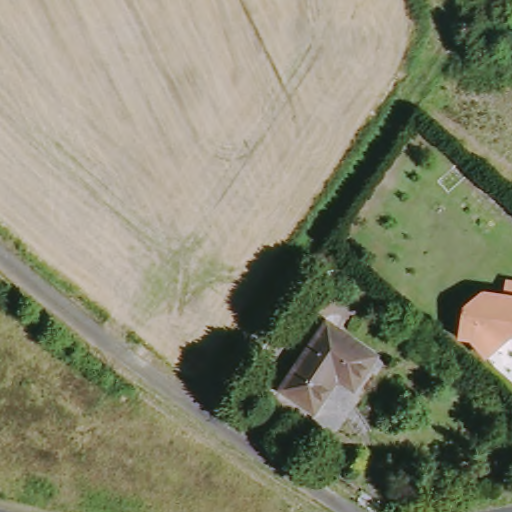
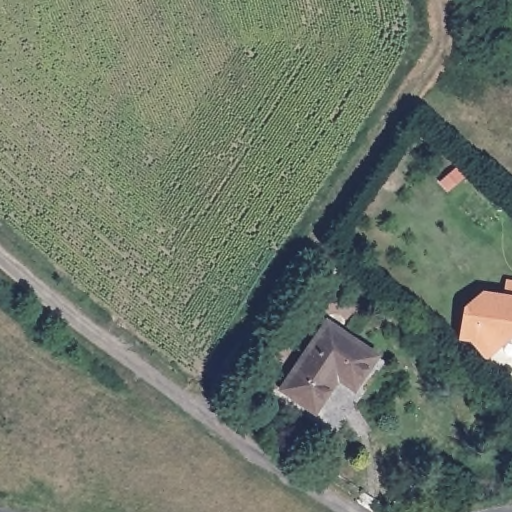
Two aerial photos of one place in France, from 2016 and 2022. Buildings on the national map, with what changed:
unchanged [(511,300),(512,293),(512,301),(511,300)]
unchanged [(478,343),(465,341),(467,330),(474,325),(469,314),(489,296),(511,300),(512,301),(512,343),(506,349),(494,360),(478,343)]
unchanged [(361,396),(344,385),(323,416),(288,391),(333,326),(384,362),(361,396)]

